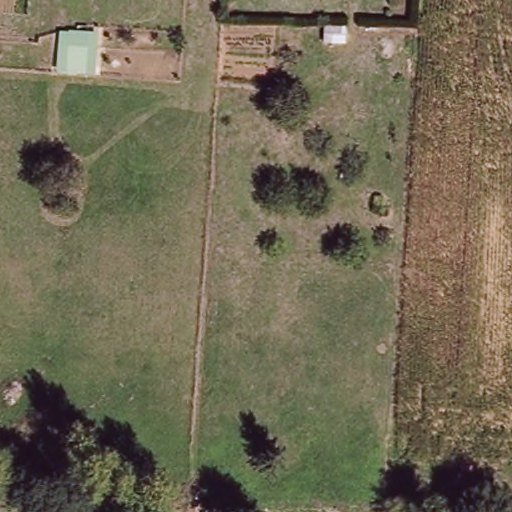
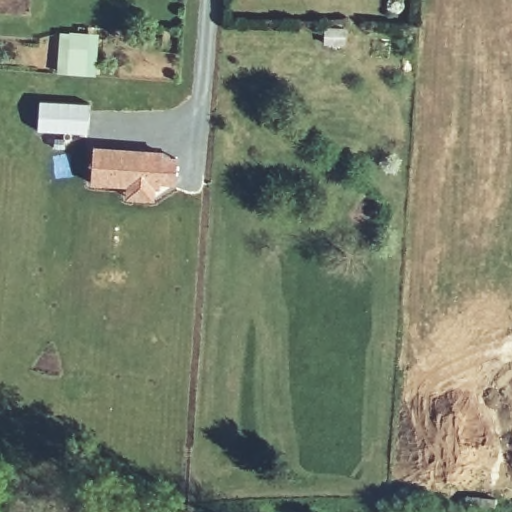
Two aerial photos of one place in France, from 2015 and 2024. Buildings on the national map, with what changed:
unchanged [(60,31),(97,34),(95,77),(57,74),(60,31)]
new [(38,100),(90,101),(87,134),(36,130),(38,100)]
new [(92,145),(156,150),(176,155),(174,185),(157,184),(155,201),(122,199),(123,187),(89,185),(92,145)]

